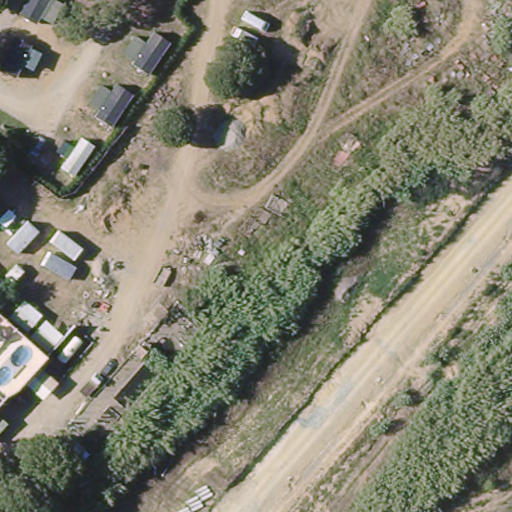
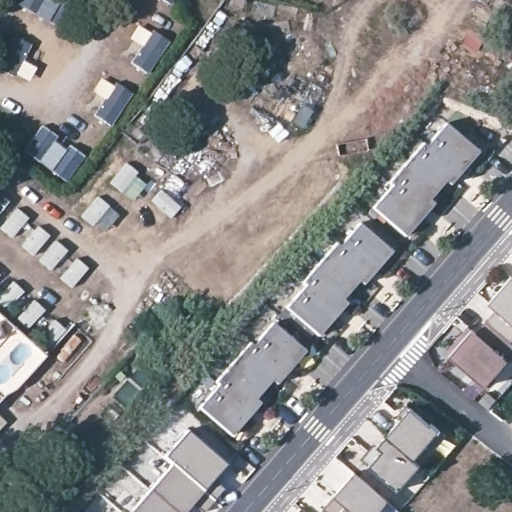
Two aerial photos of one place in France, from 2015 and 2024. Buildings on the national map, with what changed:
new [(387,182),(385,180),(418,141),(421,143),(440,120),(472,148),(444,181),(440,177),(423,197),(428,200),(400,232),(368,204),(387,182)]
new [(302,283),(300,281),(333,242),(336,244),(355,222),(387,249),(359,282),(354,278),(338,298),(342,302),(315,334),(282,306),(302,283)]
new [(497,312),(490,305),(512,279),(512,339),(510,342),(488,321),(497,312)]
new [(218,385),(214,382),(248,343),(250,344),(270,322),(301,349),(273,382),(269,378),(252,398),(258,402),(230,434),(199,407),(218,385)]
new [(369,467),(361,462),(374,446),(379,449),(388,438),(404,419),(401,417),(410,406),(447,437),(421,465),(398,491),(369,467)]
new [(174,466),(205,492),(213,501),(201,512),(193,504),(185,512),(132,512),(174,466)]
new [(326,510),(336,497),(355,475),(387,502),(378,512),(328,512),(326,510)]

